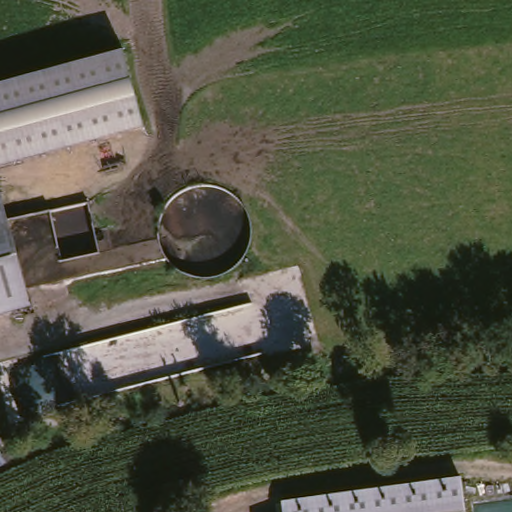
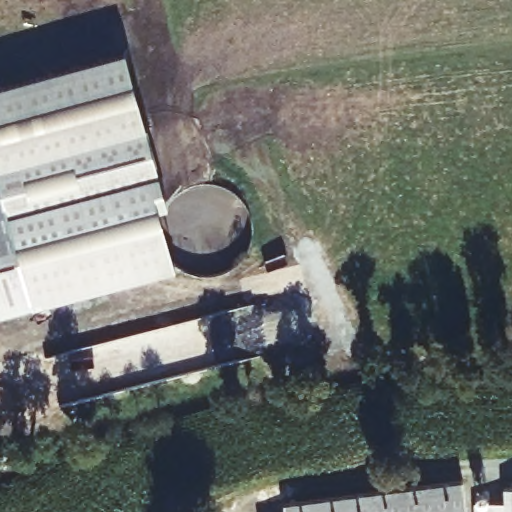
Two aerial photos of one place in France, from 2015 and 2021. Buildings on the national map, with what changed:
unchanged [(0,167),(0,85),(124,51),(146,129),(0,167)]
new [(168,204),(159,207),(175,269),(25,310),(0,200),(0,167),(146,129),(168,204)]
unchanged [(25,310),(0,316),(0,200),(25,310)]
unchanged [(282,501),(462,477),(466,512),(284,512),(282,501)]

